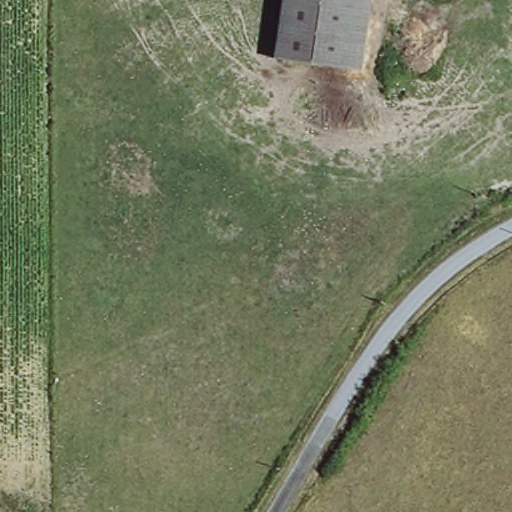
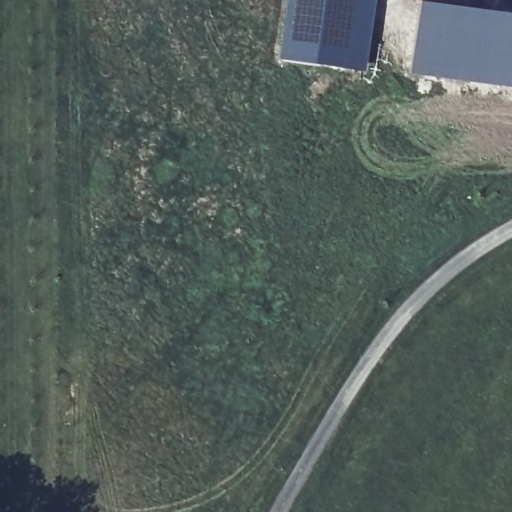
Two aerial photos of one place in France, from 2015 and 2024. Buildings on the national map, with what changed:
unchanged [(278,61),(286,0),(375,0),(363,72),(278,61)]
new [(512,15),(512,88),(409,74),(420,2),(512,15)]

